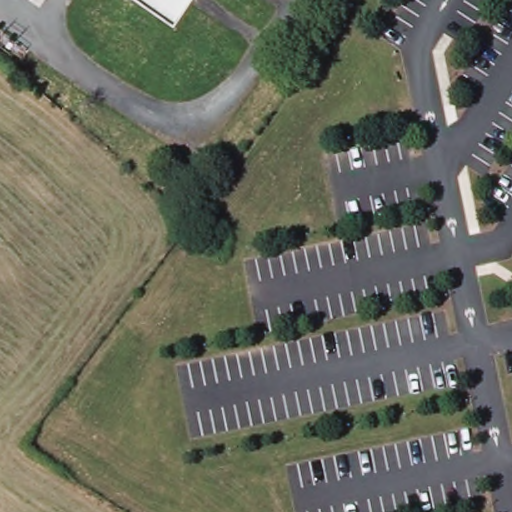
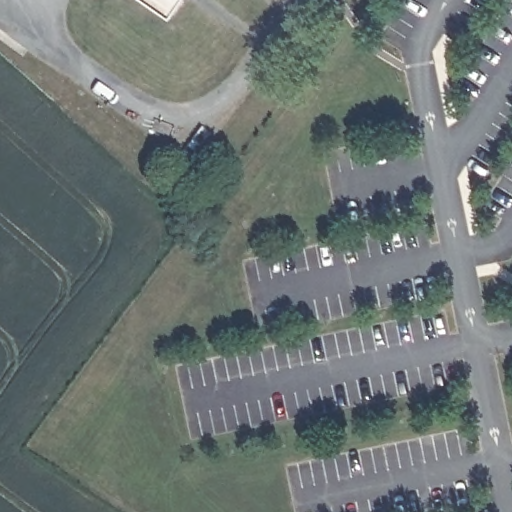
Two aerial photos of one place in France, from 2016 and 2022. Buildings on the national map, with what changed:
unchanged [(153,0),(180,0),(172,13),(153,0)]

